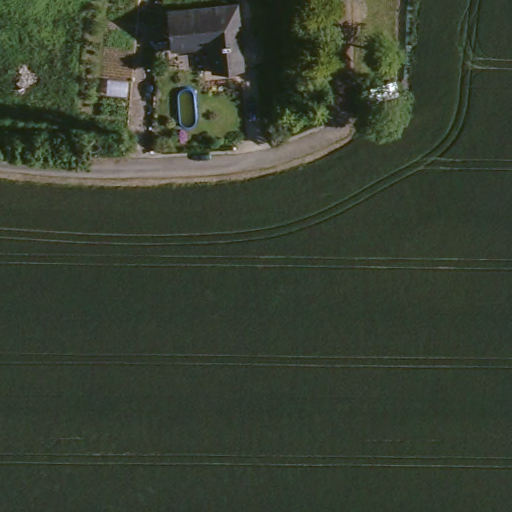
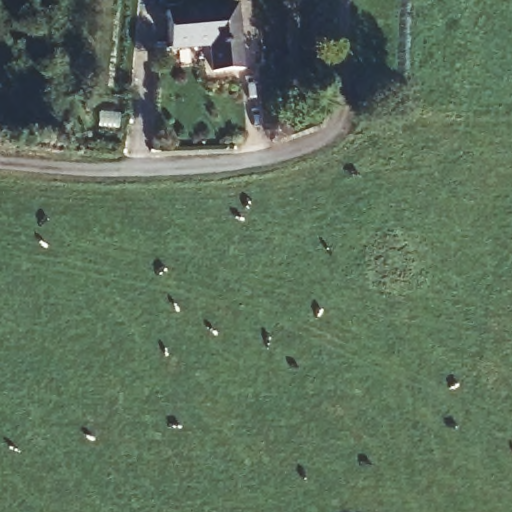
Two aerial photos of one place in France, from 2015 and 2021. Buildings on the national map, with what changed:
unchanged [(173,51),(167,16),(238,3),(249,68),(216,74),(211,44),(173,51)]

